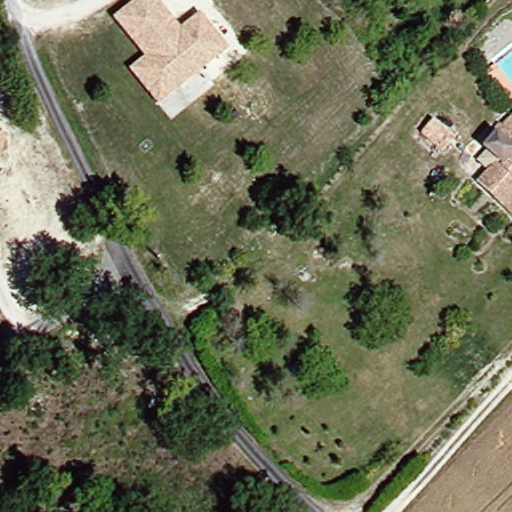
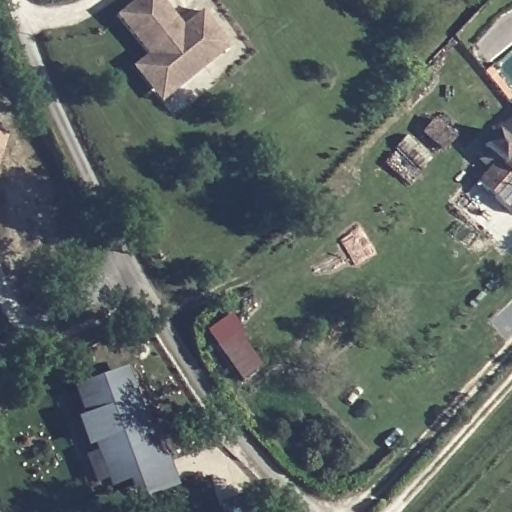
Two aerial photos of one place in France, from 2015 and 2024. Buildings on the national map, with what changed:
unchanged [(197,14),(227,50),(156,107),(127,69),(143,57),(111,18),(135,0),(157,0),(180,27),(197,14)]
unchanged [(468,186),(491,164),(477,154),(492,137),(512,115),(512,215),(507,221),(468,186)]
unchanged [(9,132),(0,159),(0,129),(9,132)]
new [(207,334),(230,319),(265,362),(244,380),(207,334)]
new [(80,465),(94,460),(90,447),(82,450),(73,425),(80,422),(74,402),(71,395),(117,379),(120,387),(140,445),(148,442),(164,489),(129,501),(123,482),(104,489),(101,480),(87,484),(80,465)]

